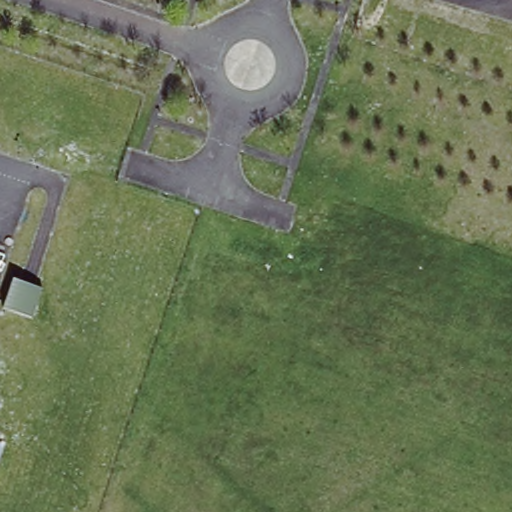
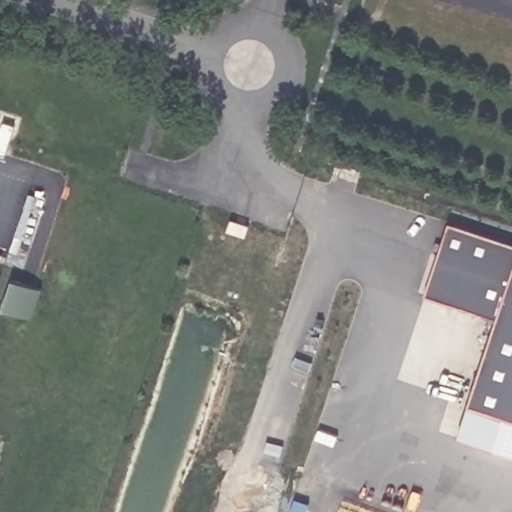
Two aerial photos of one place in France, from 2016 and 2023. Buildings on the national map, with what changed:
new [(472,404),(501,319),(428,294),(451,223),(512,243),(512,453),(460,437),(472,404)]
unchanged [(10,284),(37,292),(28,319),(2,309),(10,284)]

